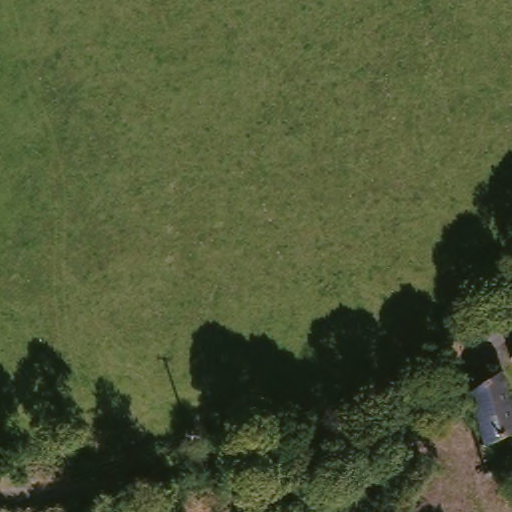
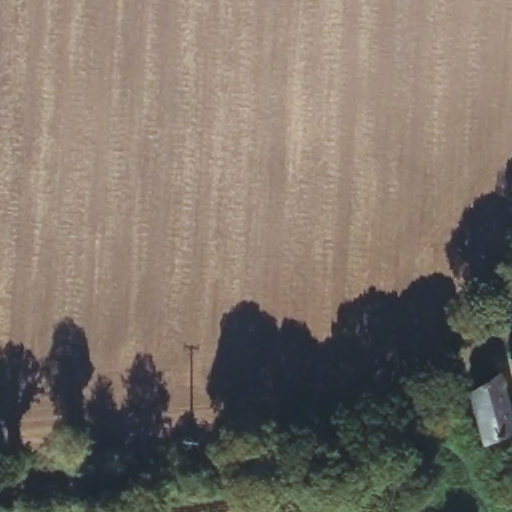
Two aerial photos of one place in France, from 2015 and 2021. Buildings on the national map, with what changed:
unchanged [(506,356),(512,354),(512,369),(506,356)]
unchanged [(480,444),(470,395),(469,389),(488,379),(489,362),(501,356),(501,378),(511,432),(480,444)]

